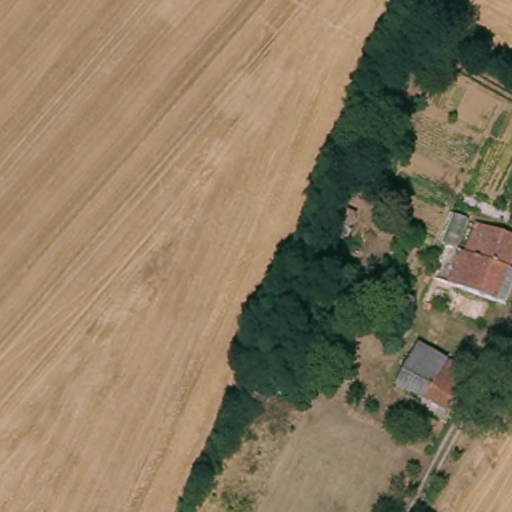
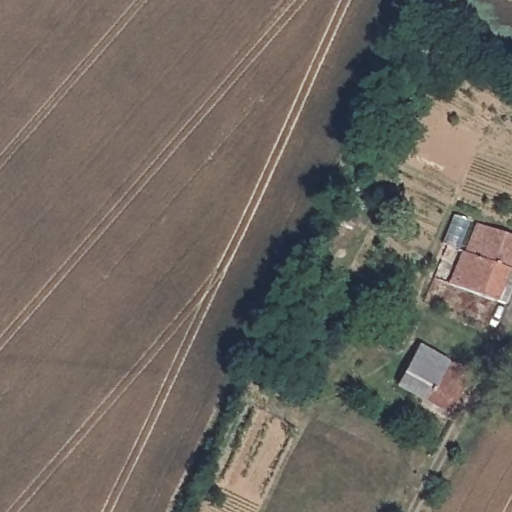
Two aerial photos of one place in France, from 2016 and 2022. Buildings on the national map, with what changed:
unchanged [(497,281),(505,285),(499,302),(457,285),(462,270),(450,264),(465,229),(467,221),(480,225),(511,235),(497,281)]
unchanged [(407,394),(429,356),(457,363),(449,381),(445,379),(430,409),(407,394)]

